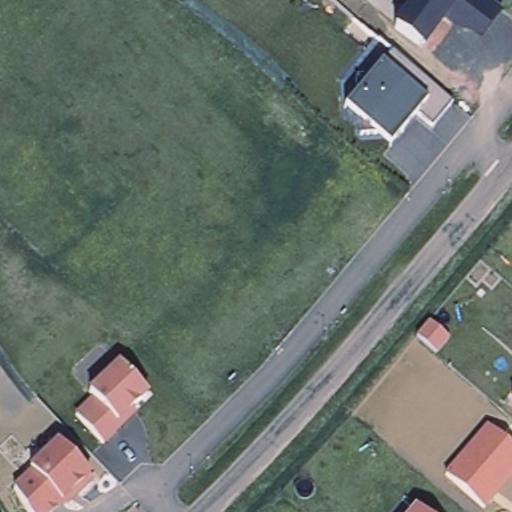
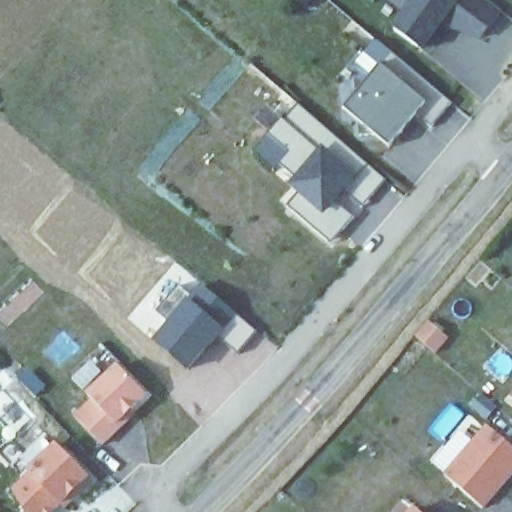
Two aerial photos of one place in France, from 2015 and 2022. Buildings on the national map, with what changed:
unchanged [(503,11),(506,13),(484,43),(441,32),(422,54),(391,31),(399,20),(403,16),(397,11),(381,0),(487,0),(503,11)]
unchanged [(453,105),(432,127),(413,116),(394,139),(342,101),(368,74),(374,73),(391,53),(453,105)]
new [(387,179),(363,207),(344,190),(333,203),(353,218),(332,242),(288,205),(301,192),(290,181),(295,174),(279,159),(274,166),(254,151),(297,103),(387,179)]
new [(203,287),(256,334),(238,352),(219,335),(187,368),(153,338),(203,287)]
unchanged [(129,421),(103,446),(77,418),(102,394),(97,388),(120,366),(148,396),(133,409),(137,414),(129,421)]
unchanged [(512,399),(512,403),(510,401),(512,399)]
unchanged [(448,473),(488,422),(512,442),(512,474),(487,505),(448,473)]
unchanged [(97,484),(68,512),(62,512),(61,510),(60,512),(25,512),(18,501),(13,492),(30,475),(27,472),(55,444),(90,478),(97,484)]
unchanged [(423,512),(414,512),(418,507),(423,512)]

